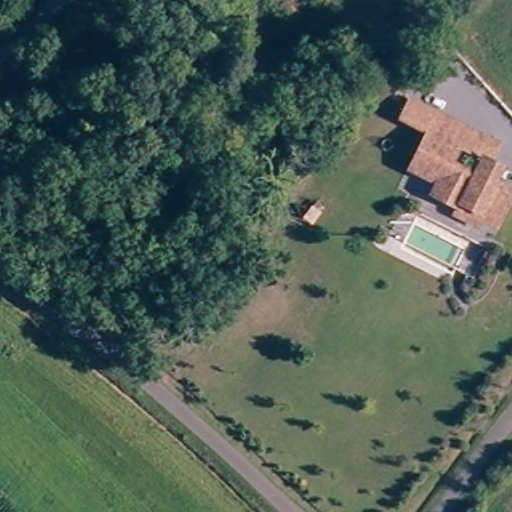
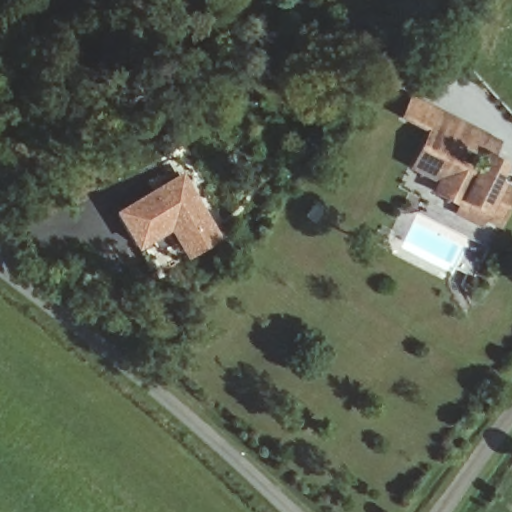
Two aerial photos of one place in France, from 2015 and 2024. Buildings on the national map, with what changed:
unchanged [(436,193),(441,182),(413,168),(431,132),(403,118),(412,101),(439,115),(467,128),(497,142),(487,160),(502,167),(494,182),(512,190),(512,195),(498,224),(483,216),(480,222),(460,213),(463,207),(436,193)]
new [(222,240),(184,261),(170,232),(136,251),(112,213),(182,173),(222,240)]

